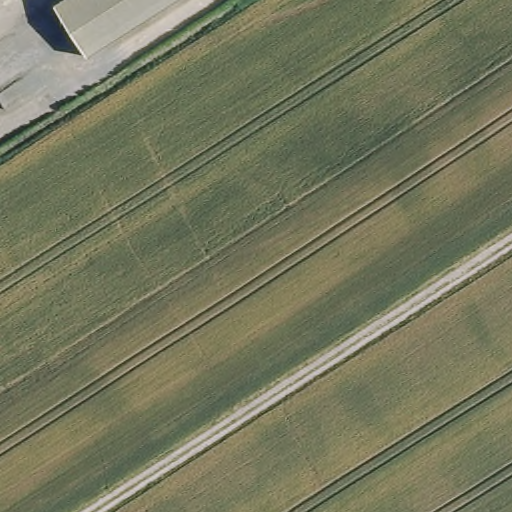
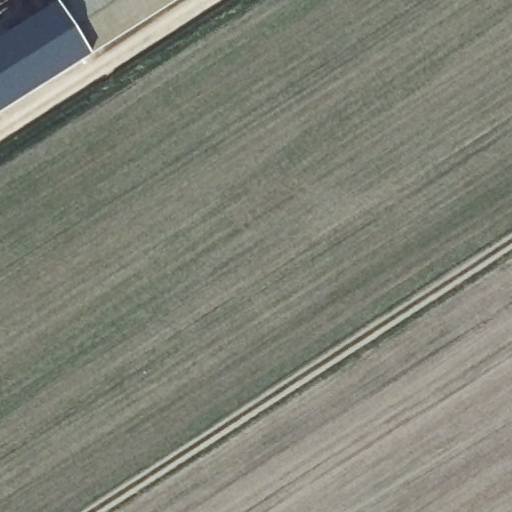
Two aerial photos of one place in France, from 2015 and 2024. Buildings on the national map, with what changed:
new [(0,107),(0,35),(56,0),(170,0),(0,107)]
demolished [(91,49),(61,0),(170,0),(91,49)]

